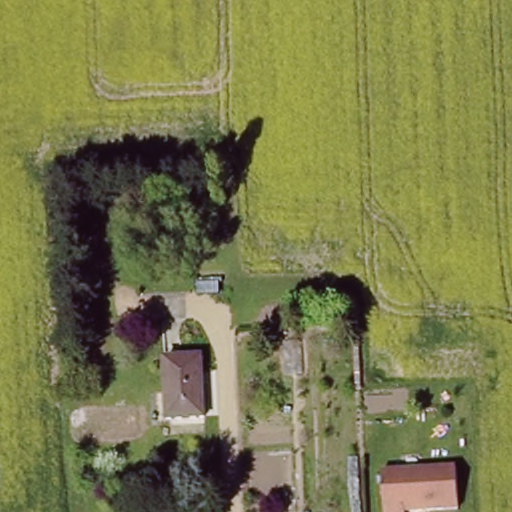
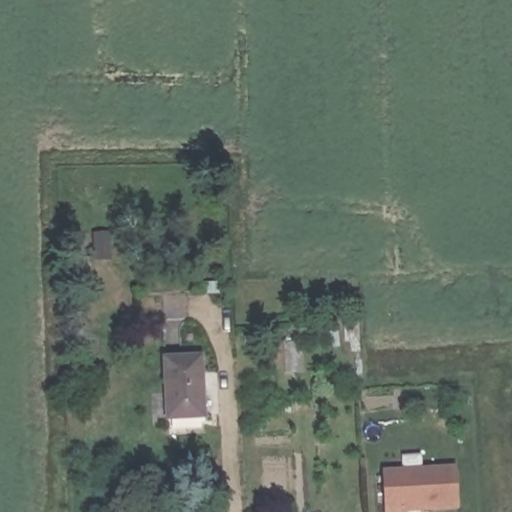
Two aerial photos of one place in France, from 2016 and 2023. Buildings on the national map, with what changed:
unchanged [(169,360),(208,359),(208,420),(171,420),(169,360)]
unchanged [(464,465),(464,512),(385,512),(384,468),(464,465)]

